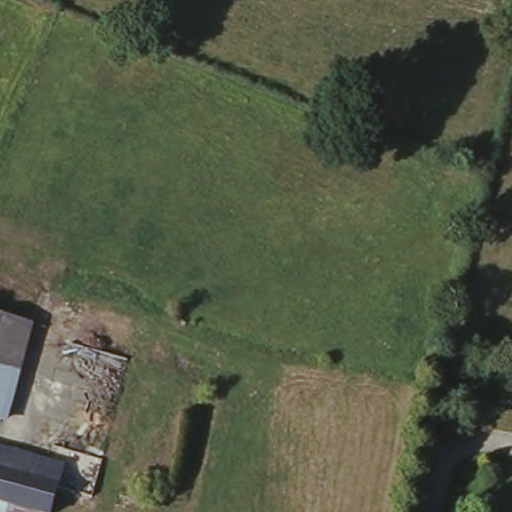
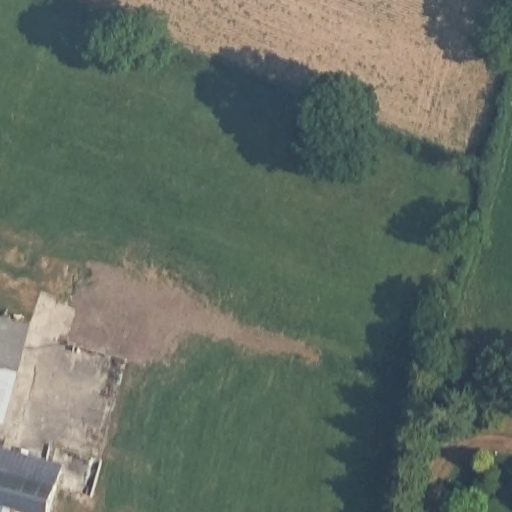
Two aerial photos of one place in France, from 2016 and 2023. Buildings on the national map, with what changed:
unchanged [(4,427),(0,426),(0,318),(30,327),(4,427)]
unchanged [(0,510),(0,449),(24,453),(62,466),(51,512),(10,512),(0,510)]
unchanged [(0,510),(10,512),(0,512),(0,510)]

